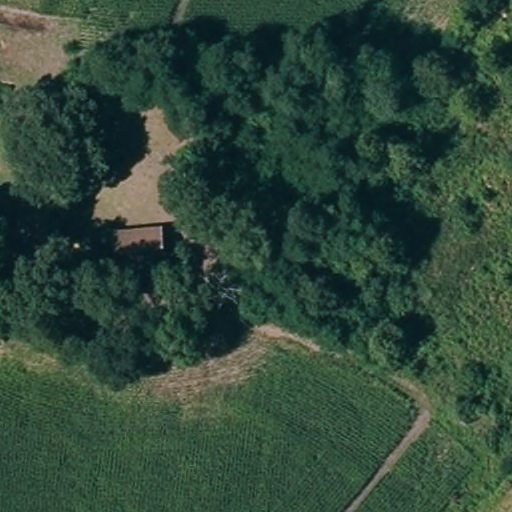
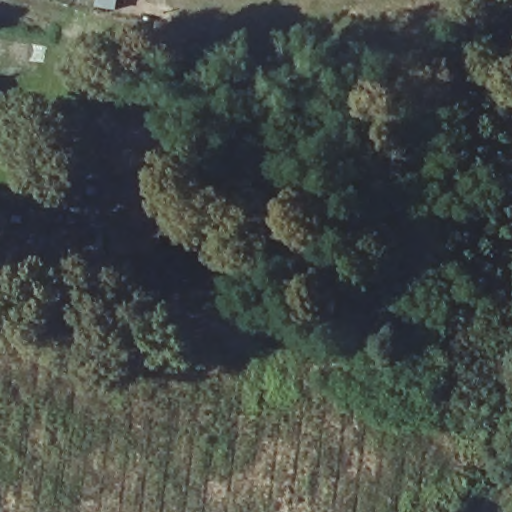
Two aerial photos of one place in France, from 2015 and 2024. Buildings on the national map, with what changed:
unchanged [(104,267),(99,232),(149,225),(153,259),(104,267)]

